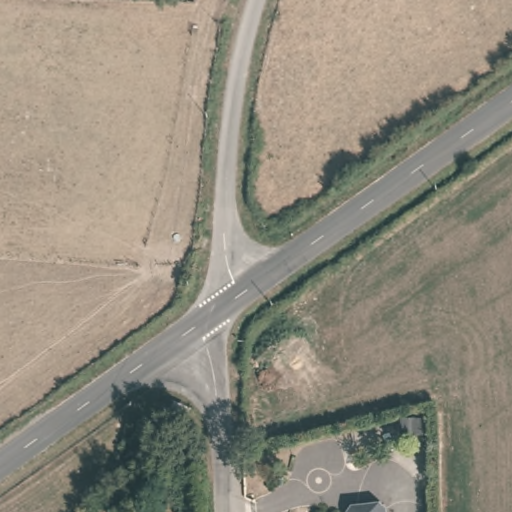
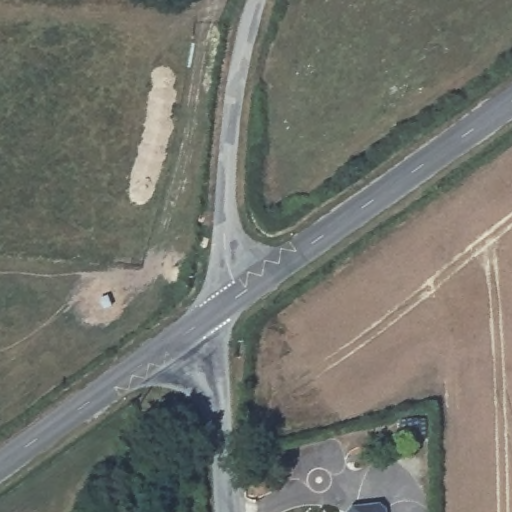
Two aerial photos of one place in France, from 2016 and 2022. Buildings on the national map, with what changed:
unchanged [(377,506),(383,510),(384,512),(347,512),(348,510),(377,506)]

